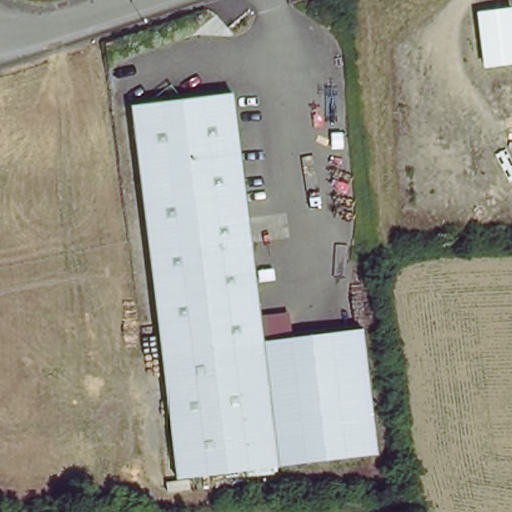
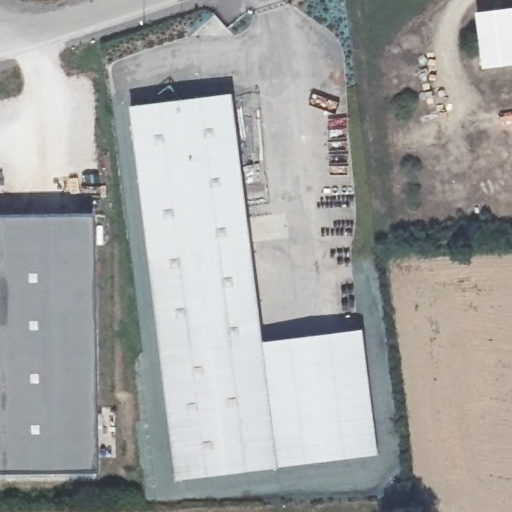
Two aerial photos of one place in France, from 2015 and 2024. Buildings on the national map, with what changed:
new [(481,69),(474,11),(512,6),(512,65),(481,69)]
unchanged [(162,352),(135,104),(233,91),(262,340),(162,352)]
new [(91,217),(95,475),(0,476),(0,221),(91,217)]
unchanged [(366,330),(379,453),(174,476),(162,352),(262,341),(366,330)]

